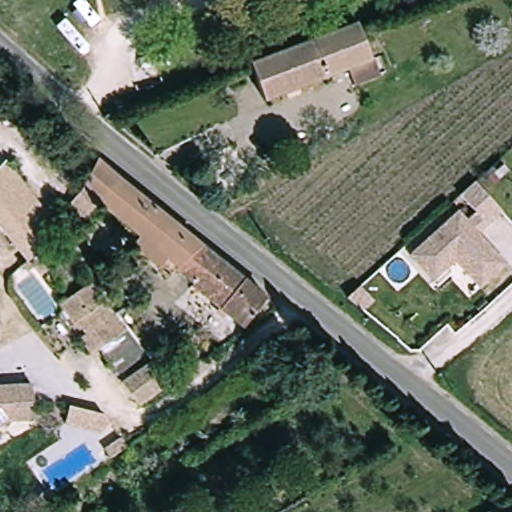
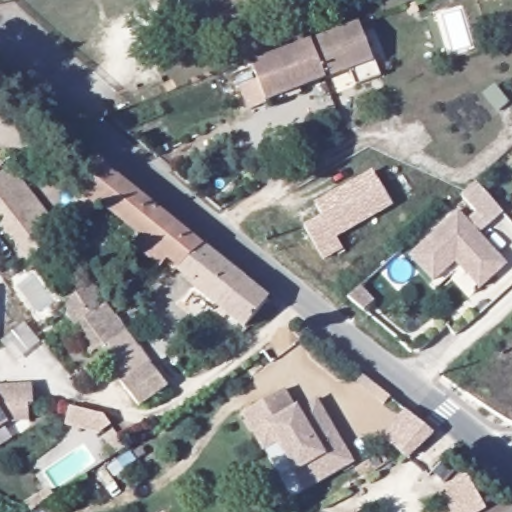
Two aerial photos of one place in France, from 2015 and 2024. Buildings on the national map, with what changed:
new [(415,4),(417,11),(408,15),(405,8),(415,4)]
unchanged [(360,22),(373,58),(375,57),(381,74),(356,84),(350,67),(265,99),(252,63),(360,22)]
unchanged [(40,277),(29,264),(0,227),(0,163),(3,158),(23,182),(14,187),(55,237),(56,239),(49,246),(60,259),(40,277)]
unchanged [(87,223),(75,212),(71,210),(85,193),(102,160),(125,180),(207,247),(183,268),(172,259),(165,268),(136,246),(145,236),(103,203),(87,223)]
new [(324,260),(302,225),(321,214),(313,201),(371,169),(393,205),(337,238),(344,248),(324,260)]
unchanged [(467,274),(465,270),(455,260),(432,279),(410,254),(458,211),(467,220),(477,212),(460,193),(465,189),(475,180),(502,211),(495,217),(478,233),(490,247),(505,264),(488,279),(480,287),(467,274)]
unchanged [(207,247),(272,299),(248,328),(196,286),(201,280),(183,268),(207,247)]
unchanged [(91,337),(65,304),(90,284),(106,306),(110,303),(120,317),(91,337)]
unchanged [(120,317),(173,387),(146,406),(144,408),(124,382),(126,381),(91,337),(120,317)]
unchanged [(39,394),(34,394),(35,411),(14,412),(0,421),(0,378),(38,375),(39,394)]
new [(313,485),(303,468),(285,437),(271,445),(251,409),(291,386),(302,405),(305,403),(323,435),(340,425),(360,458),(322,479),(312,462),(322,480),(313,485)]
unchanged [(105,416),(111,426),(100,433),(66,424),(70,408),(105,416)]
new [(406,410),(435,435),(406,458),(381,438),(406,410)]
unchanged [(122,440),(128,448),(111,460),(105,451),(122,440)]
new [(465,473),(486,510),(483,512),(450,512),(439,491),(465,473)]
unchanged [(512,502),(512,512),(496,512),(512,502)]

